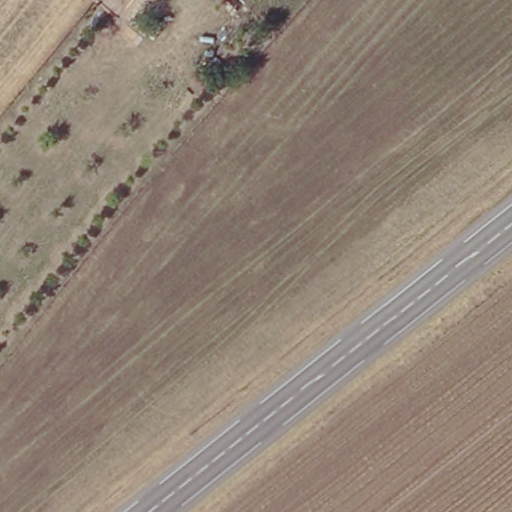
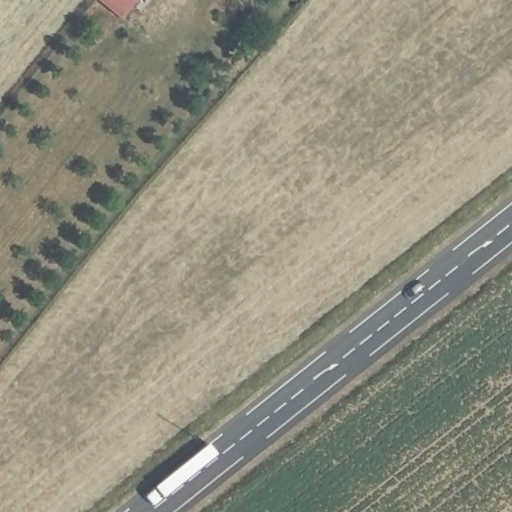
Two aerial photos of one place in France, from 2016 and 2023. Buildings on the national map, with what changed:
new [(119,20),(96,0),(135,0),(119,20)]

